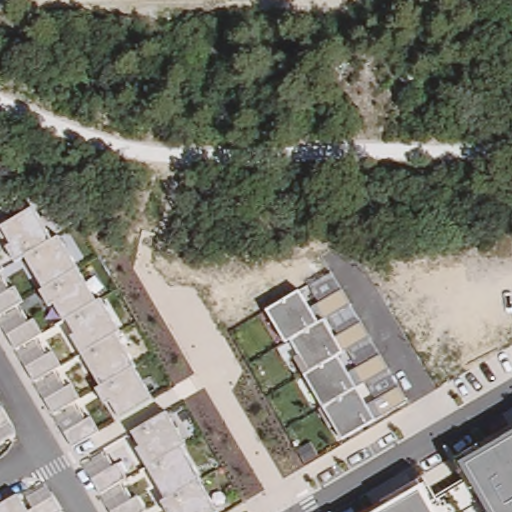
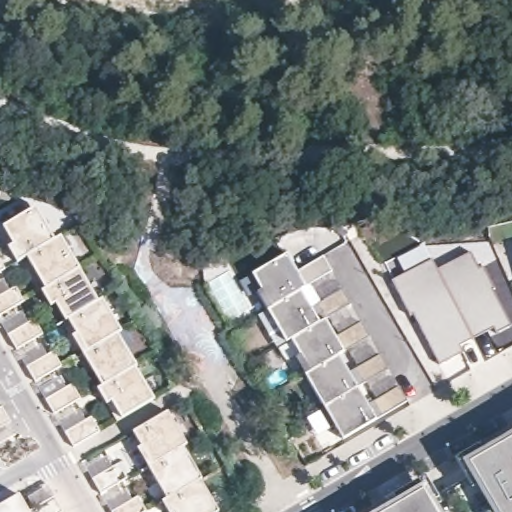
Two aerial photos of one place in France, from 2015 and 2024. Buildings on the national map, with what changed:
unchanged [(119,417),(109,400),(105,402),(96,388),(101,386),(72,336),(76,334),(68,318),(65,320),(55,301),(49,305),(40,290),(45,287),(26,255),(15,260),(7,245),(11,244),(2,225),(35,208),(52,237),(60,234),(97,300),(103,297),(121,332),(116,334),(133,365),(153,398),(119,417)]
new [(508,241),(512,240),(512,255),(508,241)]
new [(473,252),(511,325),(497,333),(494,327),(460,346),(463,353),(439,365),(394,280),(429,261),(436,271),(473,252)]
new [(268,310),(258,291),(263,288),(253,273),(286,255),(296,272),(323,255),(333,270),(306,287),(301,290),(268,310)]
unchanged [(0,271),(0,261),(4,268),(0,271)]
unchanged [(24,300),(0,314),(0,295),(15,286),(24,300)]
unchanged [(376,419),(343,438),(306,374),(310,371),(291,338),(286,341),(268,310),(301,290),(311,307),(341,290),(350,305),(326,319),(336,337),(361,322),(369,337),(339,355),(349,372),(379,356),(387,370),(358,387),(369,403),(398,387),(406,400),(376,419)]
unchanged [(34,318),(43,333),(16,348),(8,334),(34,318)]
unchanged [(53,351),(61,365),(35,381),(26,366),(53,351)]
unchanged [(72,383),(80,398),(54,413),(45,399),(72,383)]
unchanged [(0,429),(0,408),(10,423),(0,429)]
unchanged [(169,512),(162,500),(166,497),(138,447),(141,445),(133,430),(168,411),(186,443),(182,445),(201,478),(197,481),(216,511),(215,512),(169,512)]
unchanged [(90,415),(99,430),(73,446),(64,431),(90,415)]
unchanged [(374,512),(386,505),(383,502),(427,479),(437,497),(467,480),(456,457),(481,442),(484,446),(512,430),(512,512),(374,512)]
new [(118,463),(127,478),(100,493),(92,478),(118,463)]
unchanged [(28,510),(53,495),(62,511),(61,512),(0,512),(0,506),(20,495),(28,510)]
unchanged [(146,510),(143,512),(112,512),(111,511),(137,495),(146,510)]

